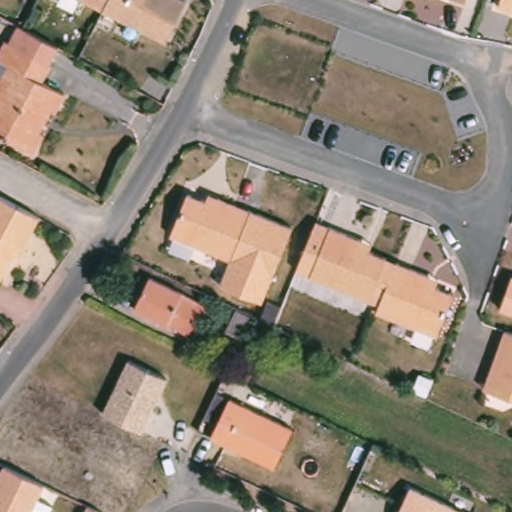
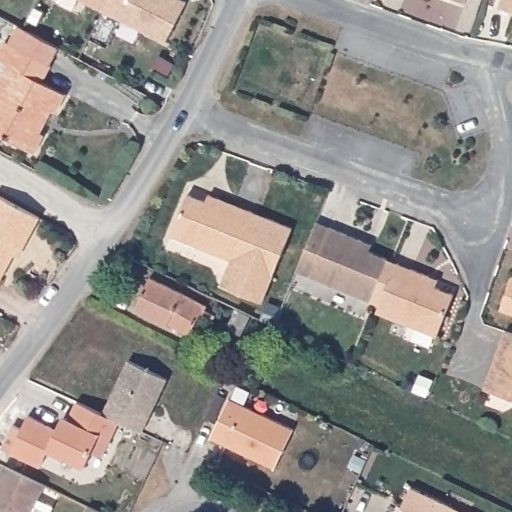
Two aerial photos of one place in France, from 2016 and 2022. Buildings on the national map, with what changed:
unchanged [(165,40),(86,0),(185,0),(165,40)]
unchanged [(466,2),(460,0),(467,0),(466,2)]
unchanged [(499,0),(512,0),(512,12),(497,7),(499,0)]
unchanged [(44,139),(34,158),(0,140),(0,82),(7,70),(0,65),(0,54),(4,46),(10,49),(21,29),(24,30),(61,50),(50,71),(51,71),(43,86),(65,99),(55,117),(52,115),(40,136),(44,139)]
unchanged [(207,199),(209,193),(249,207),(232,257),(173,234),(188,192),(207,199)]
unchanged [(23,213),(38,221),(22,252),(18,250),(0,284),(0,200),(23,213)]
unchanged [(262,302),(220,287),(232,257),(249,207),(292,225),(262,302)]
unchanged [(369,249),(390,257),(373,301),(311,276),(294,269),(315,220),(329,226),(371,242),(369,249)]
unchanged [(437,279),(435,285),(454,292),(437,336),(377,312),(395,263),(437,279)]
unchanged [(511,276),(512,276),(512,313),(499,309),(511,276)]
unchanged [(177,298),(177,299),(199,310),(184,341),(163,330),(162,331),(129,315),(144,282),(177,298)]
unchanged [(251,315),(239,338),(225,331),(236,307),(251,315)]
unchanged [(504,330),(512,333),(512,399),(489,391),(483,389),(496,353),(504,330)]
unchanged [(141,430),(102,412),(127,359),(166,377),(141,430)]
unchanged [(273,465),(210,435),(228,396),(292,426),(273,465)]
new [(11,423),(22,427),(27,418),(56,430),(62,415),(68,418),(75,402),(102,412),(120,420),(102,456),(91,451),(84,467),(47,450),(39,466),(11,452),(1,446),(11,423)]
unchanged [(4,465),(43,484),(29,512),(0,512),(0,474),(4,465)]
unchanged [(399,512),(412,484),(473,512),(399,512)]
new [(102,512),(83,512),(87,504),(102,512)]

